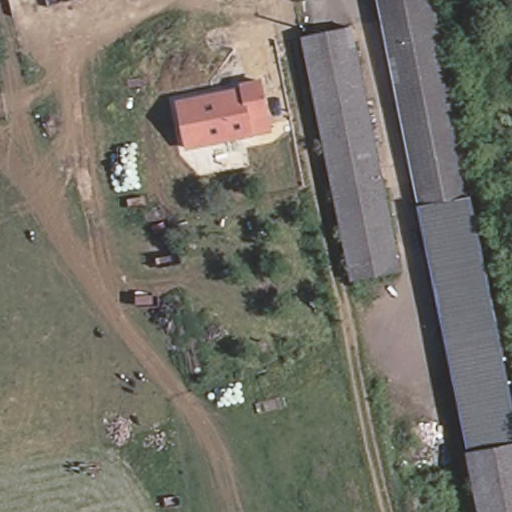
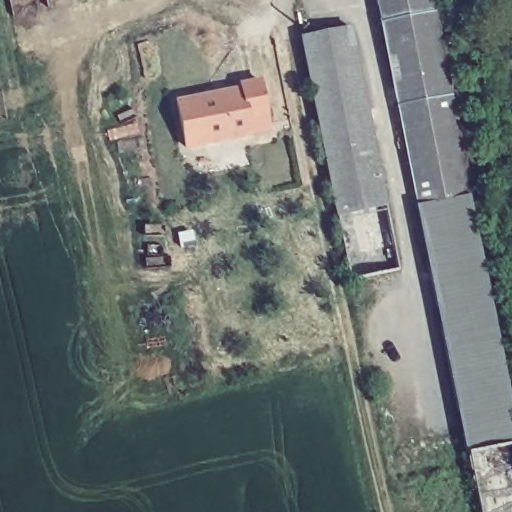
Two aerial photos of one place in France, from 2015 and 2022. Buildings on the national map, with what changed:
unchanged [(415,175),(377,0),(429,0),(512,392),(512,440),(471,446),(419,198),(412,200),(407,177),(415,175)]
unchanged [(347,24),(395,266),(345,276),(297,34),(347,24)]
unchanged [(238,89),(238,84),(262,80),(269,120),(251,124),(254,140),(185,152),(175,101),(238,89)]
unchanged [(485,512),(471,446),(512,440),(512,512),(485,512)]

